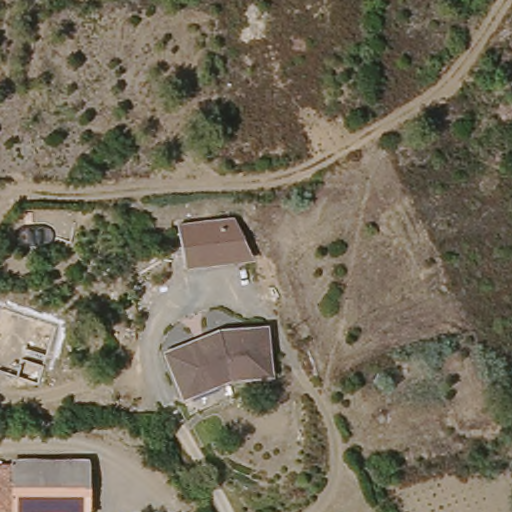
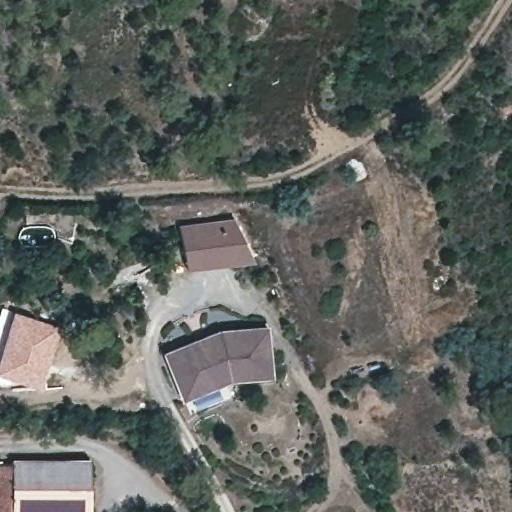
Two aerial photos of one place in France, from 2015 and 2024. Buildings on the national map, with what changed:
unchanged [(179,224),(235,218),(251,264),(187,266),(179,224)]
new [(64,324),(47,381),(22,374),(0,381),(0,367),(21,373),(4,368),(0,367),(0,338),(10,307),(22,311),(64,324)]
unchanged [(160,353),(217,328),(270,327),(272,376),(235,379),(181,398),(160,353)]
demolished [(9,346),(2,391),(0,391),(0,329),(11,330),(9,346)]
demolished [(2,391),(9,346),(34,349),(27,393),(2,391)]
unchanged [(45,512),(25,512),(15,511),(15,459),(50,458),(45,512)]
unchanged [(90,459),(91,512),(45,512),(50,458),(90,459)]
unchanged [(11,512),(0,512),(0,463),(15,459),(15,511),(11,512)]

